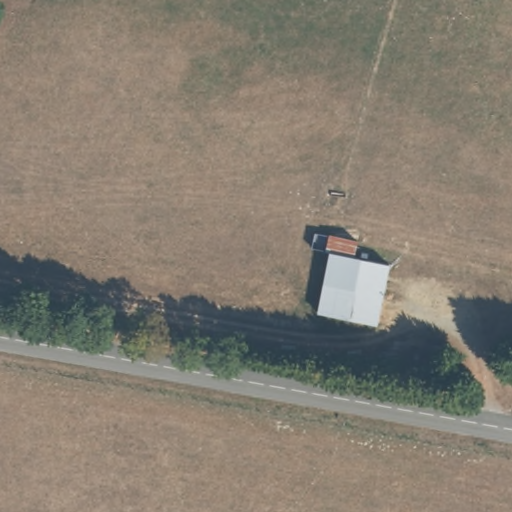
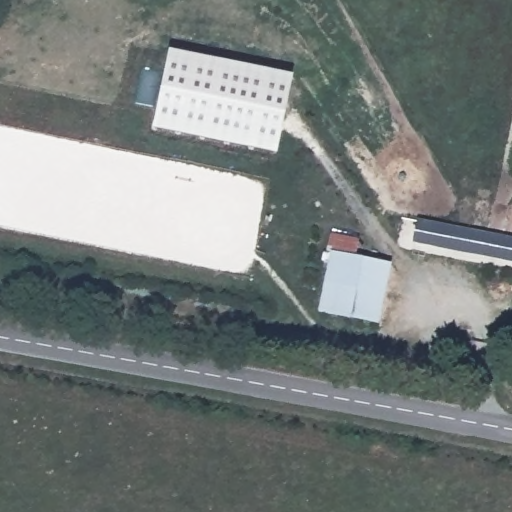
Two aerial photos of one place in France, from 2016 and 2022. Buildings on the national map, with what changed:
new [(167,50),(291,76),(275,156),(151,130),(167,50)]
unchanged [(418,219),(512,238),(512,262),(414,242),(418,219)]
unchanged [(362,234),(358,252),(392,259),(380,320),(317,307),(335,227),(362,234)]

